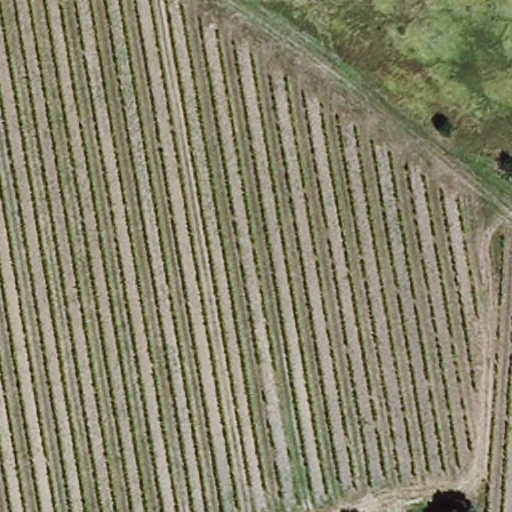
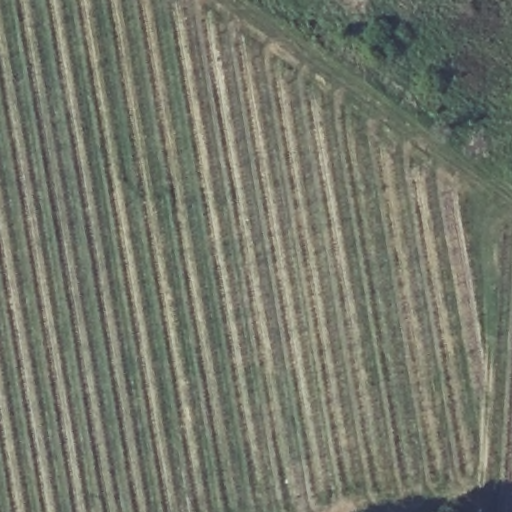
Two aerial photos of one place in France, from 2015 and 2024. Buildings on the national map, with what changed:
[]

